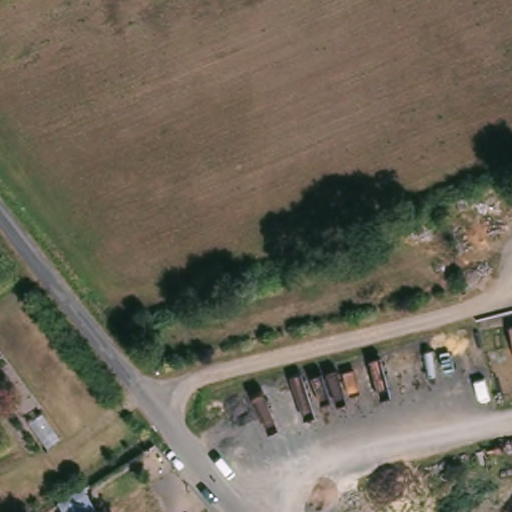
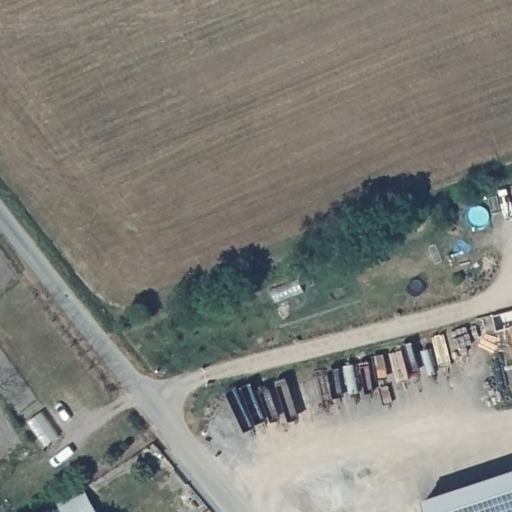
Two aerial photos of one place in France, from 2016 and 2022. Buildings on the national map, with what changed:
unchanged [(466,239),(462,230),(465,229),(472,226),(476,235),(466,239)]
new [(425,498),(512,470),(512,512),(429,512),(425,498)]
unchanged [(57,511),(82,495),(95,512),(57,512),(57,511)]

